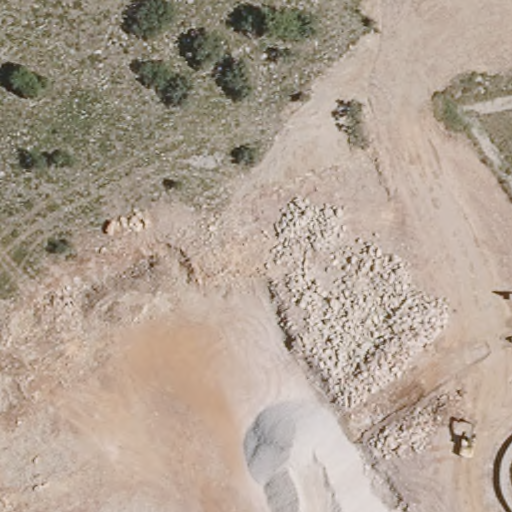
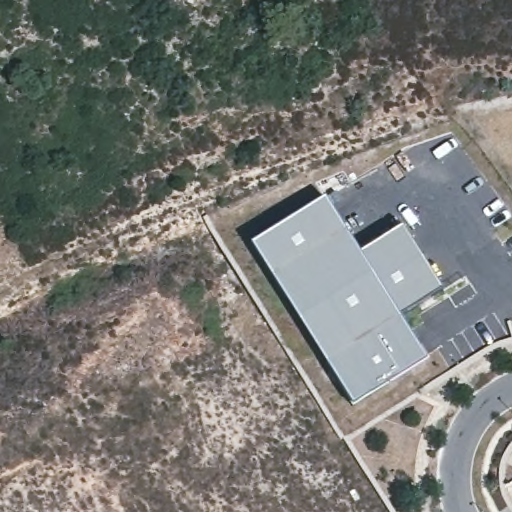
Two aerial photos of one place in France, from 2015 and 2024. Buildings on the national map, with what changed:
new [(253,242),(327,197),(361,252),(404,225),(444,290),(401,316),(428,360),(354,405),(253,242)]

